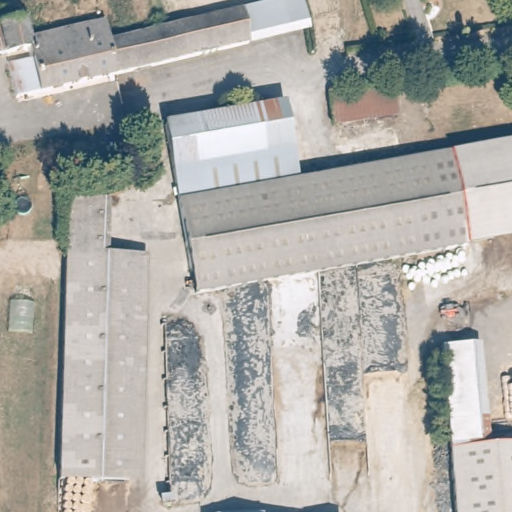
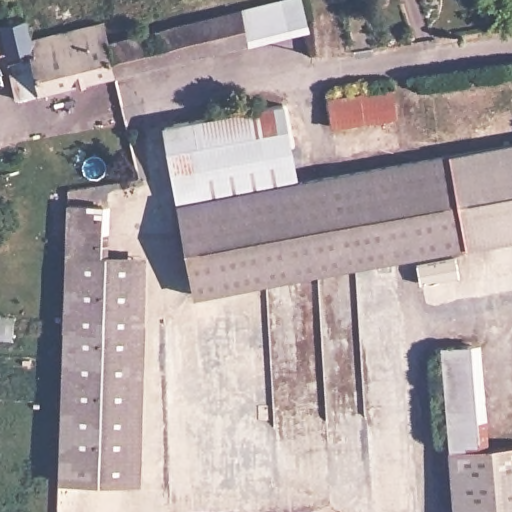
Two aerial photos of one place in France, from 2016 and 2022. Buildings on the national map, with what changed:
unchanged [(10,4),(19,0),(25,12),(31,13),(34,32),(40,30),(41,34),(0,45),(0,16),(11,15),(10,4)]
unchanged [(260,0),(294,0),(294,5),(246,15),(253,47),(121,74),(121,70),(114,40),(245,12),(243,4),(260,0)]
unchanged [(114,40),(121,70),(19,92),(14,60),(45,49),(42,36),(41,34),(40,30),(109,17),(112,34),(114,40)]
unchanged [(401,121),(340,130),(335,101),(397,92),(401,121)]
unchanged [(287,112),(301,179),(201,196),(188,128),(287,112)]
unchanged [(467,244),(336,267),(317,271),(194,291),(177,200),(164,132),(188,128),(201,196),(301,179),(329,173),(450,152),(467,244)]
unchanged [(467,244),(450,152),(512,140),(512,236),(467,244)]
unchanged [(78,209),(113,207),(111,256),(76,256),(78,209)]
unchanged [(111,256),(144,258),(136,482),(70,480),(76,256),(111,256)]
unchanged [(457,448),(447,348),(478,346),(487,445),(457,448)]
unchanged [(512,443),(512,512),(462,512),(457,448),(487,445),(512,443)]

